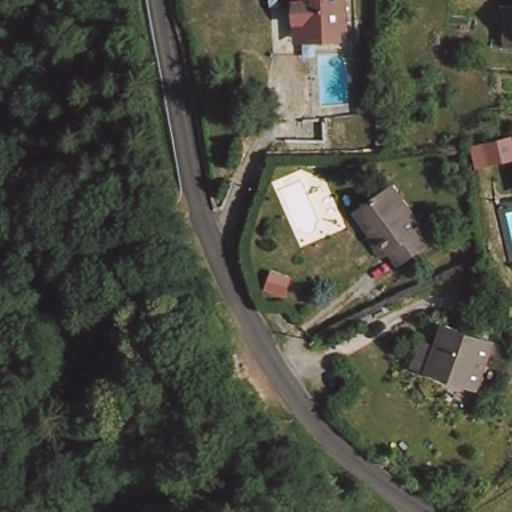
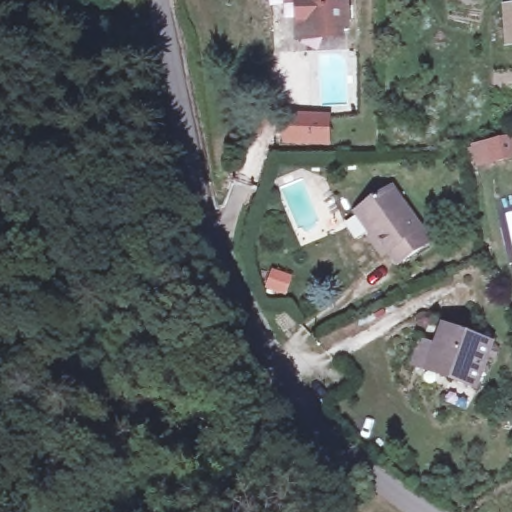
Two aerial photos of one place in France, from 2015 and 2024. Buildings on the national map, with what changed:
unchanged [(300,33),(299,23),(299,0),(347,0),(348,21),(334,21),(335,31),(300,33)]
new [(331,145),(284,145),(286,112),(331,113),(331,145)]
unchanged [(425,237),(394,258),(386,245),(381,248),(352,206),(387,182),(425,237)]
unchanged [(439,320),(487,338),(471,383),(449,375),(409,360),(418,336),(432,341),(439,320)]

